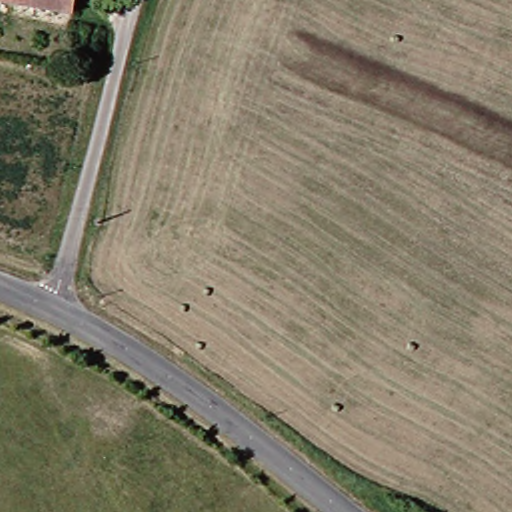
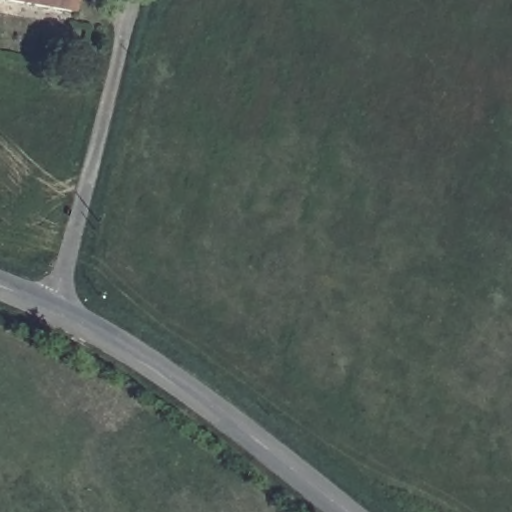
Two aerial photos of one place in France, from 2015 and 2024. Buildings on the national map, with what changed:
unchanged [(66,7),(50,5),(16,0),(66,0),(66,7)]
unchanged [(66,0),(80,0),(79,8),(66,7),(66,0)]

